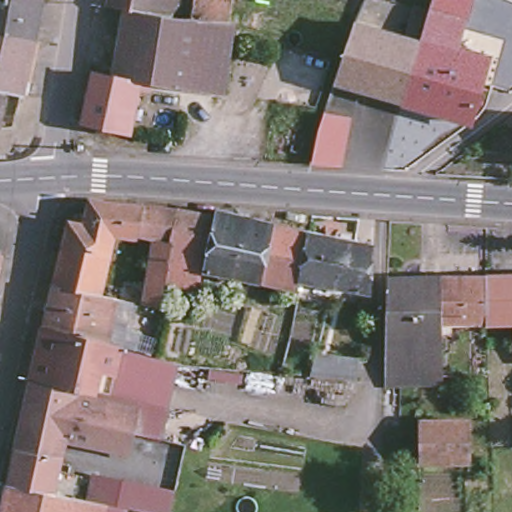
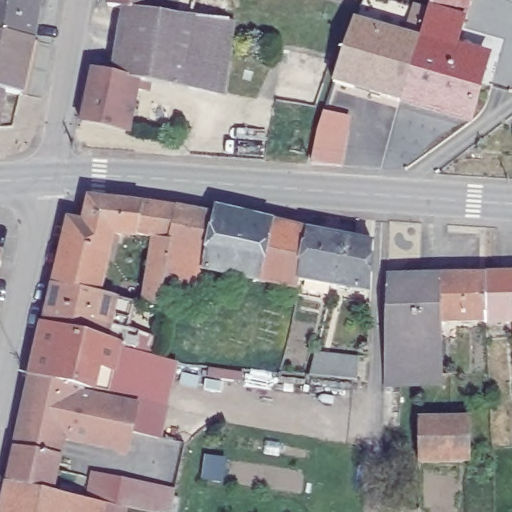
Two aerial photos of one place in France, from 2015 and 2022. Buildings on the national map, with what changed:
unchanged [(38,17),(34,35),(28,65),(23,90),(21,90),(6,87),(0,85),(0,0),(41,0),(38,17)]
unchanged [(82,122),(92,72),(113,76),(124,9),(173,20),(179,0),(232,0),(223,69),(227,69),(223,95),(148,82),(147,88),(138,86),(128,132),(82,122)]
unchanged [(173,20),(124,9),(109,5),(110,0),(179,0),(173,20)]
unchanged [(371,93),(334,82),(341,61),(354,22),(361,8),(364,0),(393,0),(384,31),(371,93)]
unchanged [(432,0),(472,0),(466,21),(429,10),(432,0)]
unchanged [(466,21),(458,49),(439,112),(400,101),(427,17),(429,10),(466,21)]
unchanged [(408,38),(416,14),(427,17),(400,101),(371,93),(384,31),(408,38)]
unchanged [(487,57),(471,121),(439,112),(458,49),(487,57)]
unchanged [(0,120),(0,85),(6,87),(0,120)]
unchanged [(348,133),(341,166),(311,164),(319,131),(348,133)]
unchanged [(62,249),(67,227),(82,230),(88,205),(139,210),(135,241),(119,237),(118,241),(111,240),(108,255),(62,249)]
unchanged [(196,310),(161,304),(170,248),(153,245),(135,241),(139,210),(176,215),(213,221),(201,275),(196,310)]
unchanged [(201,275),(213,221),(213,216),(272,230),(258,287),(201,275)]
unchanged [(286,305),(289,294),(258,287),(272,230),(308,237),(298,285),(299,286),(296,295),(295,307),(286,305)]
unchanged [(298,285),(308,237),(372,250),(370,299),(299,286),(298,285)]
unchanged [(153,245),(170,248),(161,304),(159,314),(142,310),(144,298),(153,245)]
unchanged [(98,301),(52,292),(62,249),(108,255),(98,301)]
unchanged [(486,266),(512,265),(512,347),(488,346),(487,312),(486,266)]
unchanged [(443,330),(442,330),(442,375),(386,375),(388,266),(422,266),(424,311),(443,311),(443,330)]
unchanged [(424,311),(422,266),(486,266),(487,312),(443,311),(424,311)]
unchanged [(175,371),(166,408),(121,402),(82,395),(83,392),(31,382),(43,332),(52,292),(98,301),(116,304),(128,306),(125,317),(120,333),(138,340),(133,352),(117,346),(116,349),(111,347),(111,350),(153,362),(153,366),(175,371)]
unchanged [(311,375),(316,353),(359,358),(357,380),(311,375)]
unchanged [(15,454),(31,382),(83,392),(82,395),(81,401),(105,406),(136,412),(128,458),(63,446),(60,463),(15,454)]
unchanged [(471,420),(471,461),(419,461),(419,420),(471,420)]
unchanged [(53,500),(7,491),(15,454),(60,463),(53,500)]
unchanged [(174,512),(104,512),(104,510),(93,508),(99,481),(177,497),(174,512)]
unchanged [(53,500),(93,508),(104,510),(104,512),(2,512),(7,491),(53,500)]

